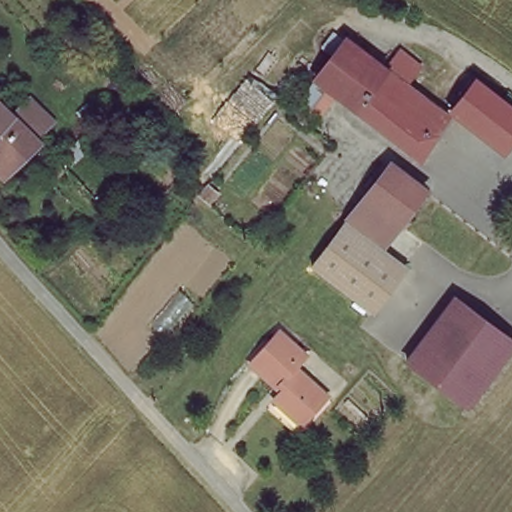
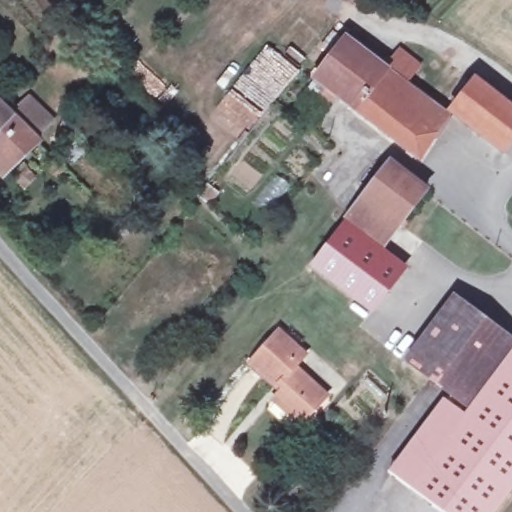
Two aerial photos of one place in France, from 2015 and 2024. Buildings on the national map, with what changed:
unchanged [(440,101),(433,109),(444,118),(418,153),(338,89),(313,120),(299,109),(329,74),(324,69),(348,39),(386,69),(391,62),(402,70),(397,79),(417,95),(424,88),(440,101)]
unchanged [(283,89),(243,139),(222,117),(256,69),(283,89)]
unchanged [(482,144),(447,115),(456,104),(473,83),(508,110),(512,114),(512,133),(495,155),(482,144)]
unchanged [(0,133),(0,111),(12,122),(0,133)]
unchanged [(36,145),(4,179),(0,175),(0,133),(12,122),(36,145)]
unchanged [(387,165),(421,192),(395,225),(361,199),(387,165)]
unchanged [(395,225),(379,246),(347,218),(361,199),(395,225)]
unchanged [(331,238),(347,218),(379,246),(396,261),(402,266),(388,283),(365,313),(308,268),(331,238)]
unchanged [(404,360),(402,359),(414,344),(439,314),(454,296),(461,302),(512,343),(512,348),(462,406),(404,360)]
unchanged [(305,359),(296,373),(326,397),(304,426),(273,401),(278,394),(248,369),(274,333),(305,359)]
new [(465,415),(512,352),(512,490),(495,512),(439,512),(388,473),(444,399),(465,415)]

